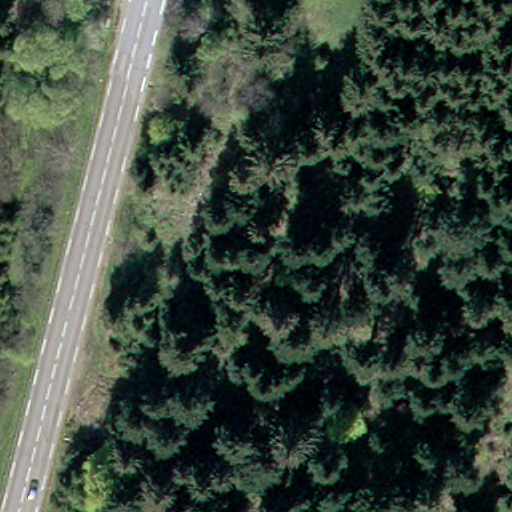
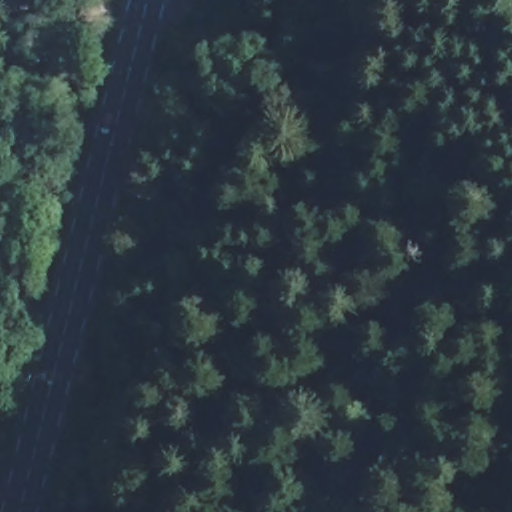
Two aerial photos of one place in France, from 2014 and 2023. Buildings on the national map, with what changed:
[]

